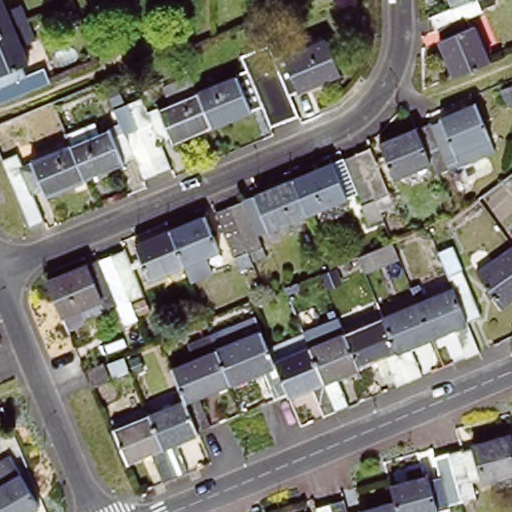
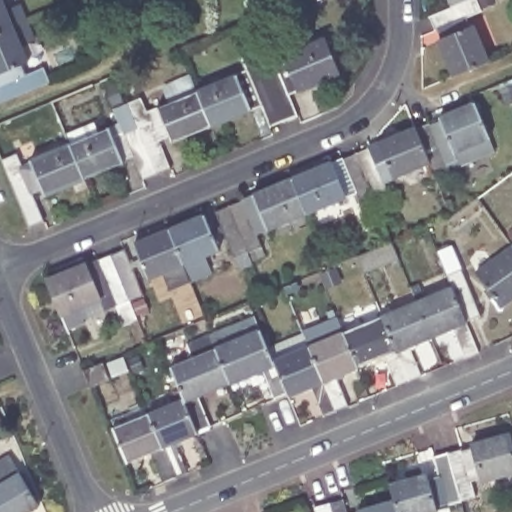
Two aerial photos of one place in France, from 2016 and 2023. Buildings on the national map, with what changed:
unchanged [(25,8),(32,26),(0,39),(0,0),(3,0),(9,15),(25,8)]
unchanged [(476,14),(471,1),(470,1),(446,11),(442,0),(486,0),(489,9),(476,14)]
unchanged [(448,80),(430,34),(428,35),(422,21),(446,11),(470,1),(474,15),(460,21),(480,67),(448,80)]
unchanged [(29,79),(48,72),(54,86),(0,108),(0,91),(2,90),(0,85),(0,39),(32,26),(40,43),(22,50),(30,67),(25,69),(29,79)]
unchanged [(298,92),(298,95),(288,99),(296,120),(282,125),(255,55),(268,49),(273,62),(284,58),(285,60),(324,45),(337,77),(298,92)]
unchanged [(268,131),(260,112),(249,115),(248,113),(210,129),(197,98),(236,82),(235,79),(246,76),(240,60),(255,55),(282,125),(268,131)]
unchanged [(170,144),(168,139),(156,143),(168,172),(154,178),(126,107),(140,102),(146,117),(197,98),(210,129),(170,144)]
unchanged [(431,173),(426,160),(414,131),(412,128),(428,122),(429,124),(475,105),(493,149),(431,173)]
unchanged [(141,183),(131,161),(82,181),(70,151),(65,138),(95,126),(100,139),(110,135),(111,140),(122,136),(112,113),(126,107),(154,178),(141,183)]
unchanged [(392,173),(380,144),(414,131),(426,160),(392,173)]
unchanged [(367,222),(356,193),(343,197),(342,195),(304,211),(291,181),(330,165),(329,163),(355,152),(368,147),(387,193),(374,198),(381,216),(367,222)]
unchanged [(42,197),(41,193),(30,197),(41,225),(27,231),(0,164),(15,158),(20,170),(70,151),(82,181),(42,197)]
unchanged [(233,255),(215,209),(227,203),(241,198),(242,201),(291,181),(304,211),(255,231),(260,245),(246,250),(233,255)]
unchanged [(203,218),(215,246),(204,251),(210,271),(188,279),(181,261),(170,232),(203,218)]
unchanged [(146,274),(135,246),(170,232),(181,261),(146,274)]
unchanged [(363,273),(356,256),(392,242),(398,258),(363,273)]
unchanged [(465,319),(451,288),(436,252),(451,246),(478,314),(465,319)]
unchanged [(83,321),(65,327),(46,281),(97,261),(96,259),(110,253),(123,248),(145,305),(132,309),(136,319),(122,324),(115,304),(81,317),(83,321)]
unchanged [(498,307),(478,277),(512,253),(512,297),(498,307)]
unchanged [(477,350),(465,355),(452,324),(429,333),(416,302),(451,288),(465,319),(477,350)]
unchanged [(406,342),(418,374),(406,379),(381,316),(416,302),(429,333),(406,342)]
unchanged [(395,384),(382,352),(355,363),(342,332),(381,316),(406,379),(395,384)]
unchanged [(286,392),(272,398),(260,366),(227,379),(216,349),(260,332),(272,360),(286,392)]
unchanged [(332,372),(345,405),(333,410),(307,346),(342,332),(355,363),(332,372)]
unchanged [(195,392),(207,425),(196,430),(184,401),(170,368),(192,360),(185,343),(210,334),(216,349),(227,379),(195,392)]
unchanged [(321,415),(308,383),(286,392),(272,360),(307,346),(333,410),(321,415)]
unchanged [(90,387),(82,369),(102,361),(109,379),(90,387)]
unchanged [(196,431),(173,441),(185,472),(173,477),(148,415),(184,401),(196,430),(196,431)]
unchanged [(161,482),(148,451),(126,460),(115,429),(148,415),(173,477),(161,482)]
unchanged [(433,461),(447,457),(471,450),(472,453),(509,442),(512,452),(512,473),(470,485),(475,501),(460,505),(448,509),(433,461)]
unchanged [(0,512),(0,465),(7,461),(36,507),(28,512),(0,512)]
unchanged [(390,491),(426,482),(435,512),(396,512),(395,507),(390,491)]
unchanged [(342,505),(345,512),(328,512),(327,509),(342,505)]
unchanged [(396,512),(374,512),(395,507),(396,512)]
unchanged [(328,512),(315,512),(327,509),(328,512)]

